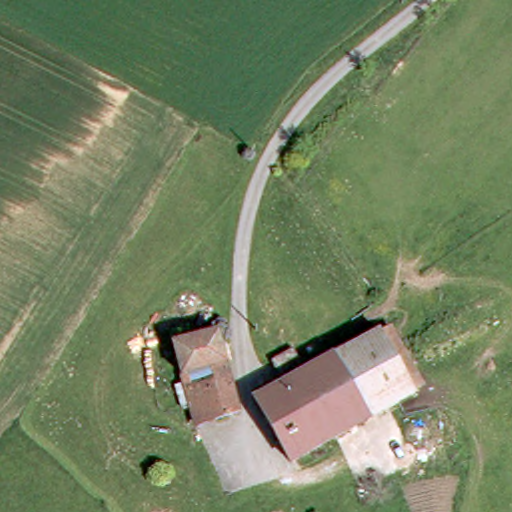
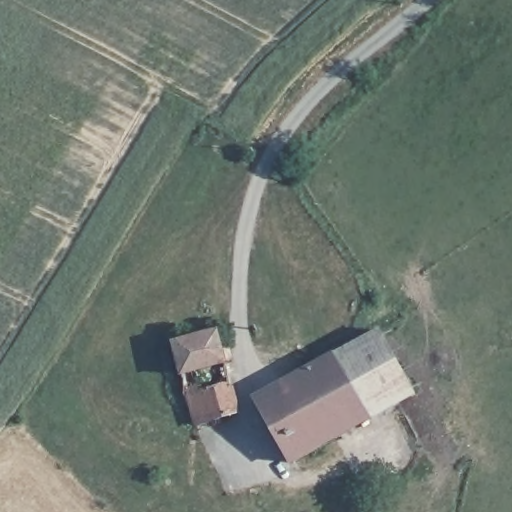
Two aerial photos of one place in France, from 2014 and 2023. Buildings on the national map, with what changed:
unchanged [(381,330),(417,393),(292,463),(255,397),(381,330)]
unchanged [(175,374),(174,369),(167,342),(220,331),(227,362),(175,374)]
unchanged [(178,408),(169,370),(174,369),(175,374),(227,362),(240,414),(194,427),(188,405),(178,408)]

